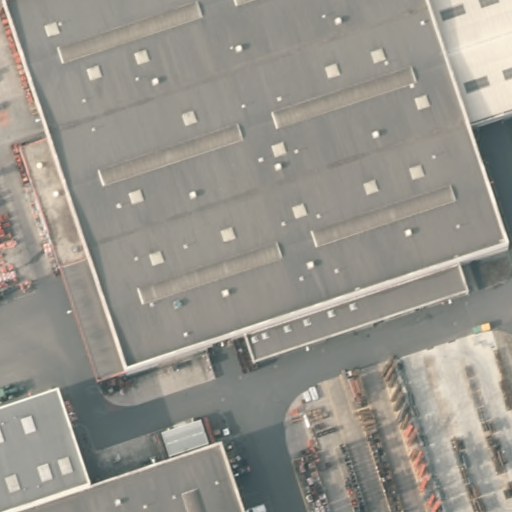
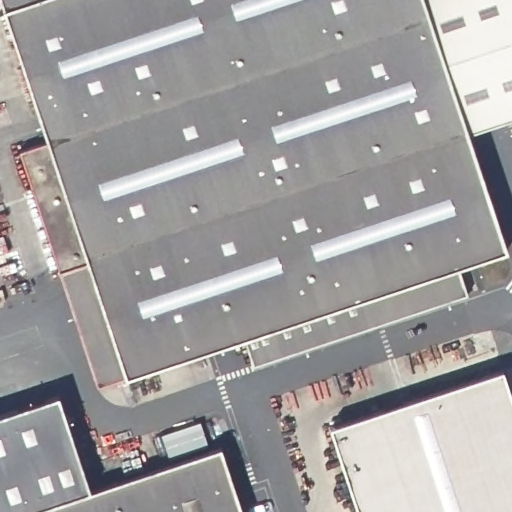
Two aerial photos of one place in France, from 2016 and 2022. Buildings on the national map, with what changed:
unchanged [(85,257),(56,265),(17,147),(45,136),(0,0),(429,0),(472,128),(510,244),(460,261),(244,333),(123,373),(85,257)]
unchanged [(429,0),(512,0),(512,115),(472,128),(429,0)]
unchanged [(94,379),(56,265),(85,257),(123,373),(94,379)]
unchanged [(471,289),(252,361),(244,333),(460,261),(471,289)]
new [(331,426),(504,369),(512,394),(512,512),(359,512),(331,426)]
unchanged [(26,512),(0,512),(0,414),(59,394),(91,491),(26,512)]
unchanged [(224,446),(246,512),(26,512),(224,446)]

